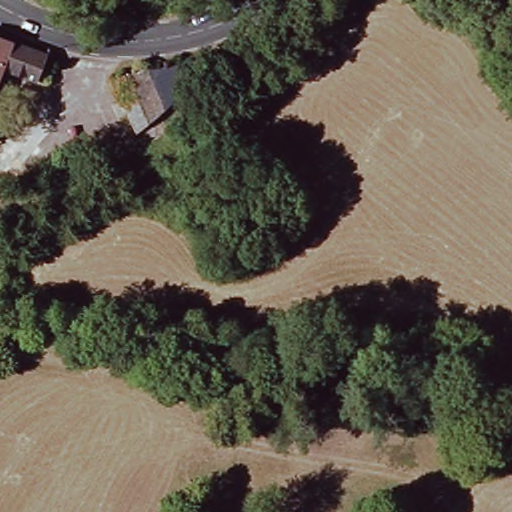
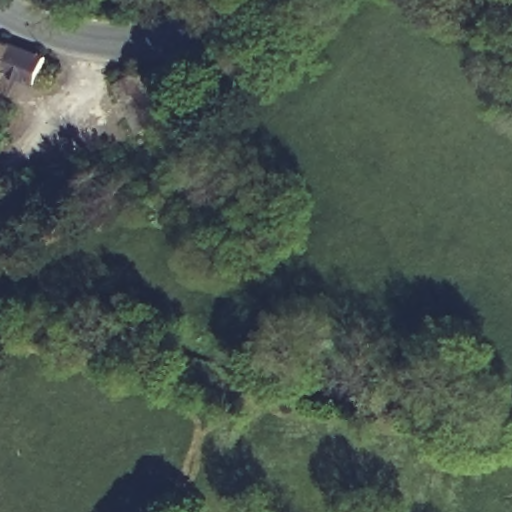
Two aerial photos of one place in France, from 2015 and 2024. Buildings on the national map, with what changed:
unchanged [(12,72),(0,67),(0,37),(29,47),(47,55),(34,88),(10,79),(12,72)]
unchanged [(150,75),(182,70),(195,83),(146,130),(135,139),(112,87),(137,76),(150,75)]

